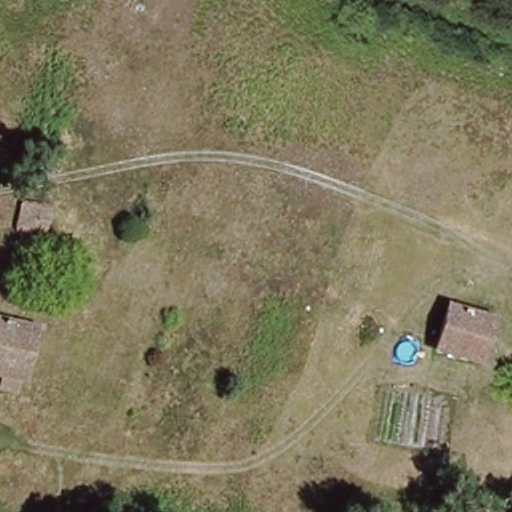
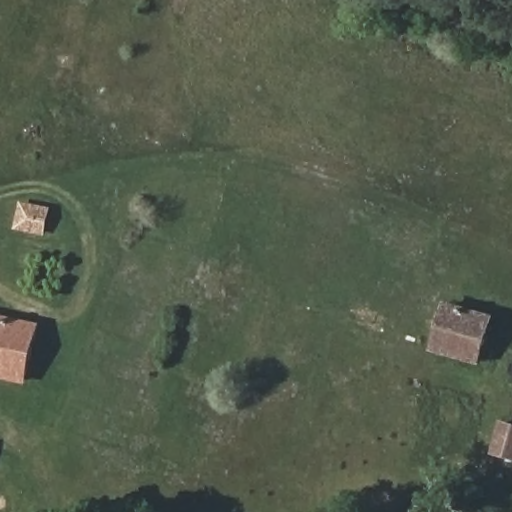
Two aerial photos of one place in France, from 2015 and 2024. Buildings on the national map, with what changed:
unchanged [(16,223),(26,201),(56,212),(46,234),(16,223)]
unchanged [(435,343),(456,303),(494,322),(474,361),(435,343)]
unchanged [(0,319),(36,328),(22,387),(0,382),(0,319)]
new [(512,424),(512,460),(492,455),(501,421),(512,424)]
unchanged [(0,457),(0,450),(3,452),(0,457)]

